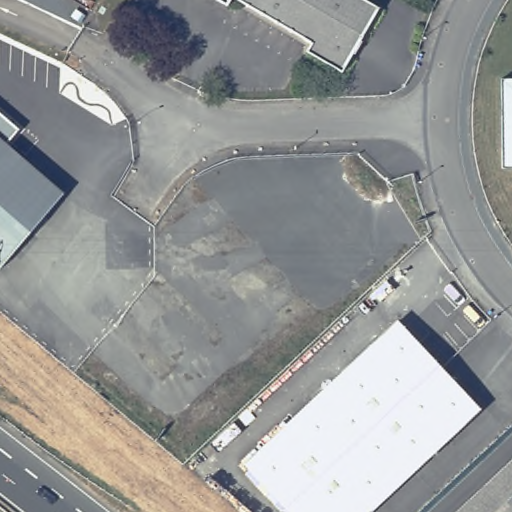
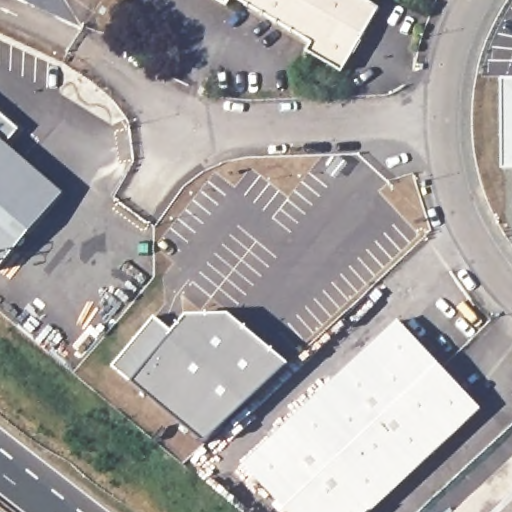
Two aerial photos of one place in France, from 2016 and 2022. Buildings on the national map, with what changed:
unchanged [(231,5),(222,0),(234,0),(231,5)]
unchanged [(346,72),(311,51),(315,44),(308,39),(308,38),(305,36),(304,37),(302,36),(302,35),(282,22),(281,24),(279,22),(267,15),(264,14),(265,12),(253,6),(252,7),(250,6),(250,5),(242,0),(370,0),(383,7),(364,41),(358,52),(346,72)]
unchanged [(512,83),(512,173),(506,174),(506,83),(512,83)]
unchanged [(6,142),(64,191),(0,266),(0,110),(20,127),(6,142)]
new [(204,444),(111,367),(153,316),(173,332),(187,315),(230,315),(288,364),(204,444)]
unchanged [(369,512),(287,512),(243,465),(398,321),(480,409),(369,512)]
unchanged [(459,512),(512,463),(512,512),(459,512)]

